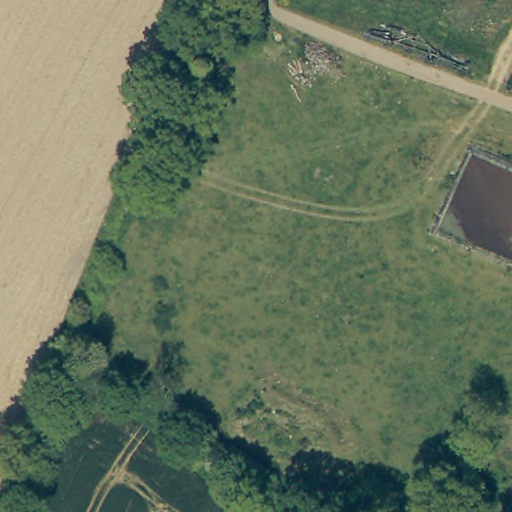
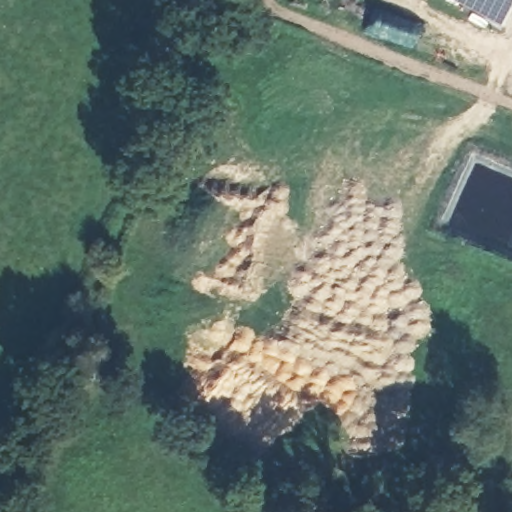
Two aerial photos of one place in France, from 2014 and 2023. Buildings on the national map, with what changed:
new [(512,18),(506,29),(452,0),(512,0),(512,18)]

